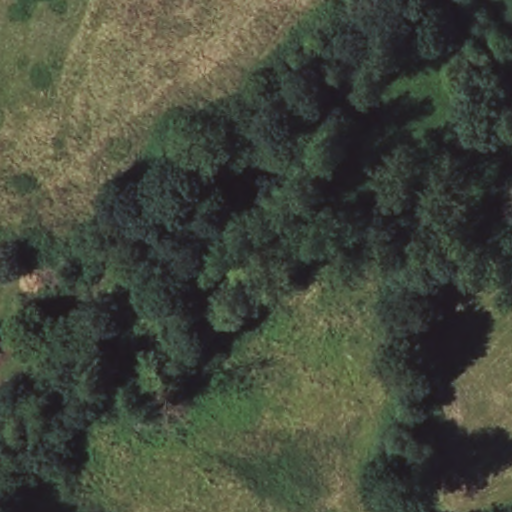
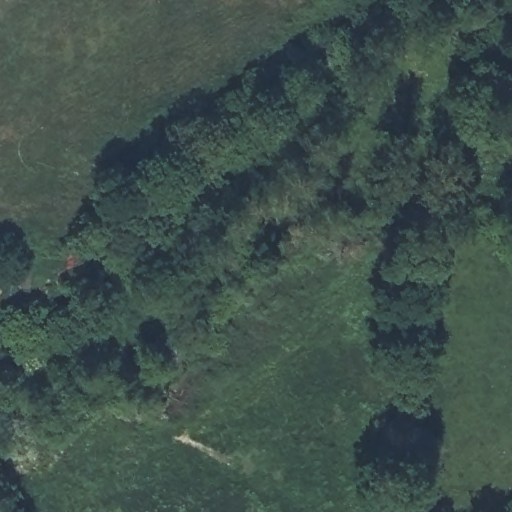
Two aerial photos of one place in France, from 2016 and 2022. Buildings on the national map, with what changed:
[]

